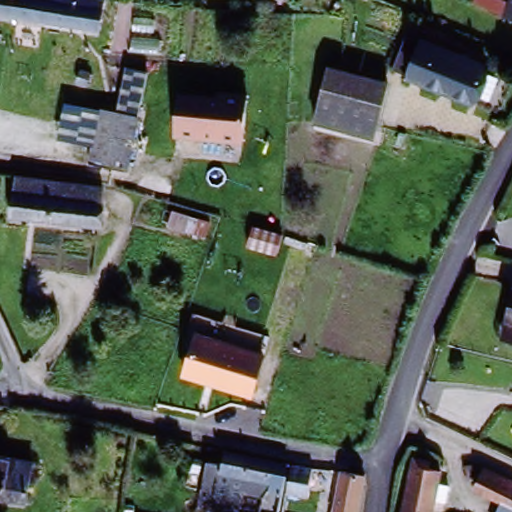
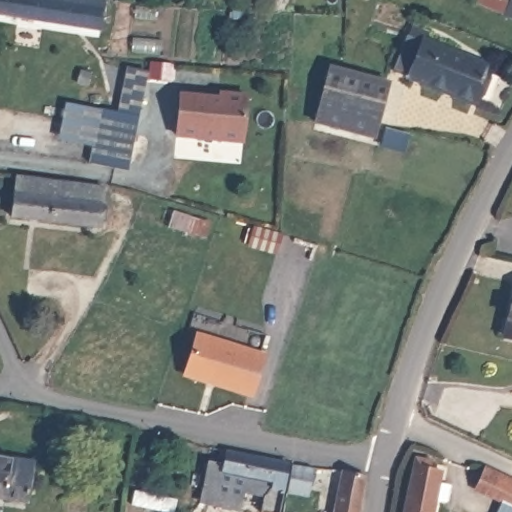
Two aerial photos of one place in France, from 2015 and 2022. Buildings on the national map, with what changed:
unchanged [(0,0),(107,0),(104,29),(0,18),(0,0)]
unchanged [(499,0),(510,5),(512,1),(512,22),(510,21),(503,18),(475,3),(476,0),(499,0)]
unchanged [(497,104),(482,98),(479,104),(414,76),(415,73),(398,67),(412,35),(427,42),(428,40),(494,69),(491,74),(507,81),(497,104)]
unchanged [(150,74),(129,173),(89,161),(100,109),(118,112),(128,68),(150,74)]
unchanged [(337,68),(395,86),(377,140),(320,123),(337,68)]
unchanged [(250,89),(247,144),(175,139),(180,89),(250,89)]
unchanged [(101,233),(10,219),(15,181),(71,189),(107,194),(106,198),(101,233)]
unchanged [(507,338),(512,320),(512,339),(507,338)]
unchanged [(195,331),(269,355),(256,401),(181,378),(195,331)]
unchanged [(258,497),(236,493),(233,511),(195,504),(202,464),(220,467),(222,454),(282,466),(274,512),(255,512),(258,497)]
unchanged [(287,467),(305,469),(300,498),(281,494),(287,467)]
unchanged [(435,512),(404,512),(415,468),(437,476),(435,484),(441,487),(435,512)]
unchanged [(346,470),(367,475),(361,512),(340,512),(346,470)]
unchanged [(27,507),(0,502),(0,477),(30,482),(27,507)]
unchanged [(505,511),(476,501),(482,478),(512,489),(512,512),(508,512),(505,511)]

